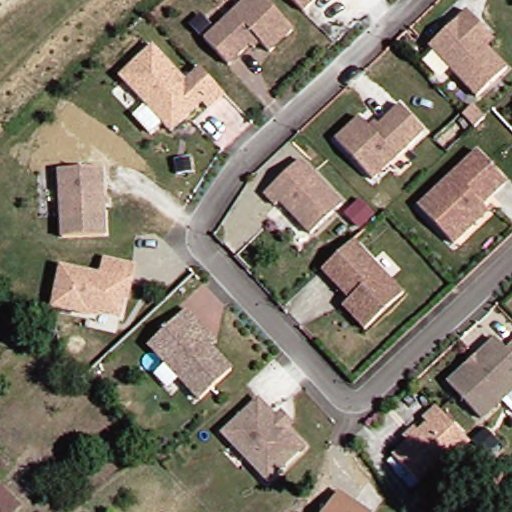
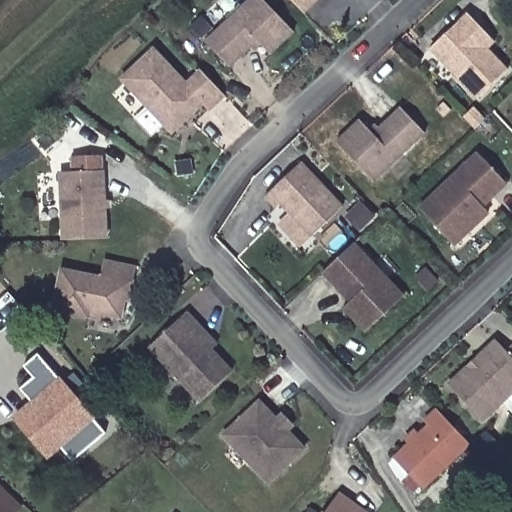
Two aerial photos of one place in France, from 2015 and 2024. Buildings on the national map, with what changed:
unchanged [(248,0),(254,0),(288,36),(264,59),(251,45),(223,71),(199,45),(248,0)]
unchanged [(284,0),(314,0),(297,15),(284,0)]
unchanged [(482,37),(478,41),(499,64),(469,93),(421,43),(456,9),(467,21),(482,37)]
unchanged [(222,99),(223,99),(208,114),(201,108),(177,131),(149,101),(142,108),(119,84),(151,54),(184,88),(199,74),(222,99)]
unchanged [(468,125),(461,118),(473,106),(483,116),(471,128),(468,125)]
unchanged [(363,128),(372,138),(400,111),(424,136),(373,185),(339,150),(363,128)]
unchanged [(479,218),(450,244),(416,208),(475,153),(503,183),(479,205),(485,212),(479,218)]
unchanged [(338,210),(307,240),(276,208),(272,212),(260,199),(296,165),(338,210)]
unchanged [(58,174),(101,172),(105,239),(62,242),(58,174)]
unchanged [(335,263),(355,244),(405,295),(369,332),(346,308),(357,298),(341,281),(337,284),(325,273),(335,263)]
unchanged [(61,270),(100,280),(104,264),(134,271),(130,289),(126,288),(117,322),(87,314),(86,319),(51,310),(61,270)]
unchanged [(225,357),(219,363),(230,376),(199,404),(149,348),(187,314),(212,342),(225,357)]
unchanged [(446,391),(493,344),(503,356),(512,347),(512,395),(480,426),(446,391)]
new [(105,433),(71,462),(60,449),(47,461),(10,418),(31,401),(20,389),(34,378),(22,365),(37,354),(105,433)]
unchanged [(304,451),(268,486),(223,439),(259,404),(304,451)]
unchanged [(423,421),(436,409),(469,444),(422,488),(394,459),(408,444),(404,439),(414,430),(418,434),(427,426),(423,421)]
unchanged [(15,512),(0,512),(0,489),(19,509),(15,512)]
unchanged [(362,512),(323,512),(338,493),(352,504),(362,512)]

